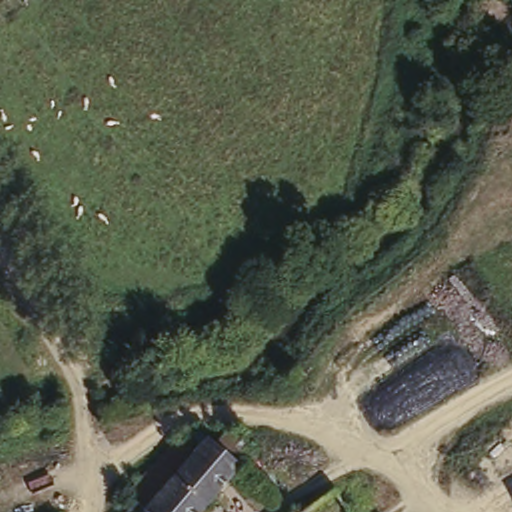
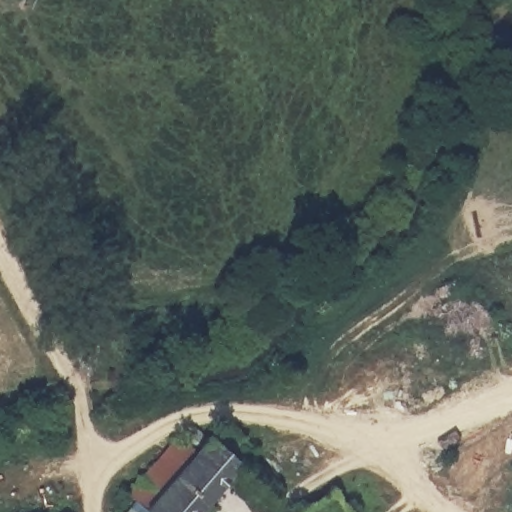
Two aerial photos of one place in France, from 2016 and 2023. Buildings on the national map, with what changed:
unchanged [(151,508),(134,490),(182,438),(197,425),(210,436),(216,441),(235,426),(260,450),(245,464),(205,512),(154,512),(155,511),(151,508)]
unchanged [(138,512),(131,512),(134,509),(138,512)]
unchanged [(75,512),(70,512),(74,510),(75,512)]

